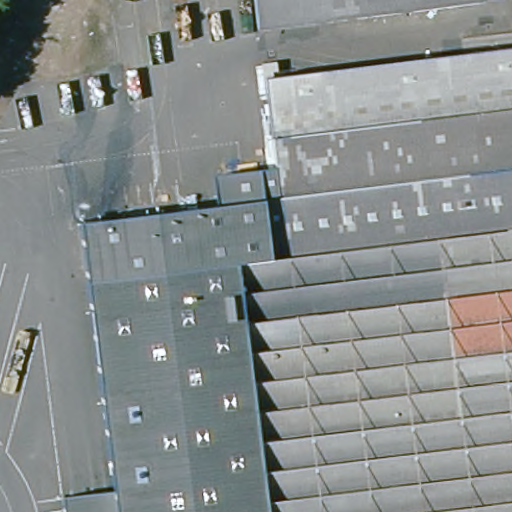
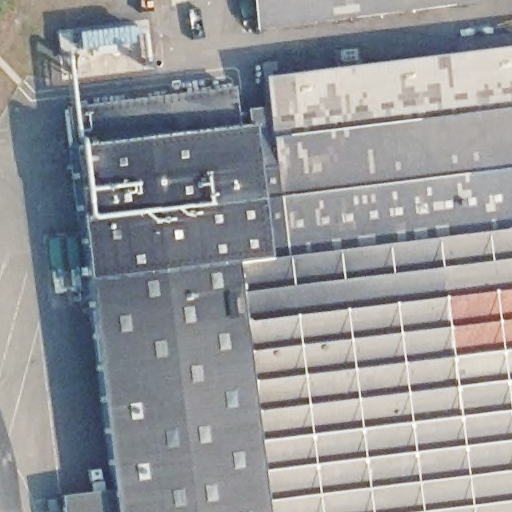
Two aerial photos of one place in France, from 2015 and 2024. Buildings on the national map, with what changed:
unchanged [(476,0),(477,4),(420,10),(258,29),(254,0),(476,0)]
new [(81,50),(79,34),(134,27),(136,42),(81,50)]
unchanged [(85,269),(80,223),(121,218),(277,201),(271,136),(265,79),(423,61),(512,51),(512,512),(112,512),(85,269)]
new [(271,136),(277,201),(262,202),(121,218),(80,223),(73,147),(66,107),(232,86),(238,125),(249,123),(248,109),(268,106),(271,136)]
unchanged [(61,495),(109,490),(111,512),(64,512),(61,495)]

